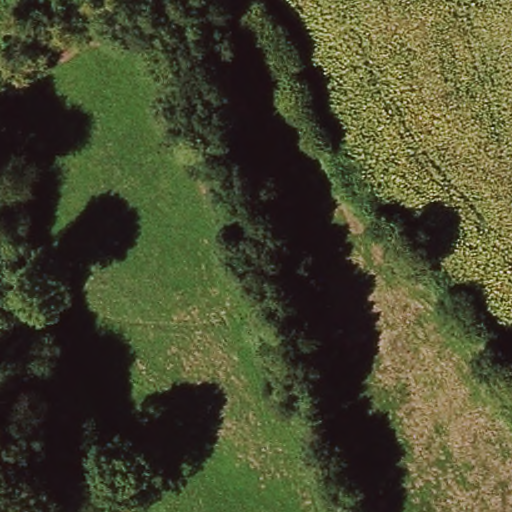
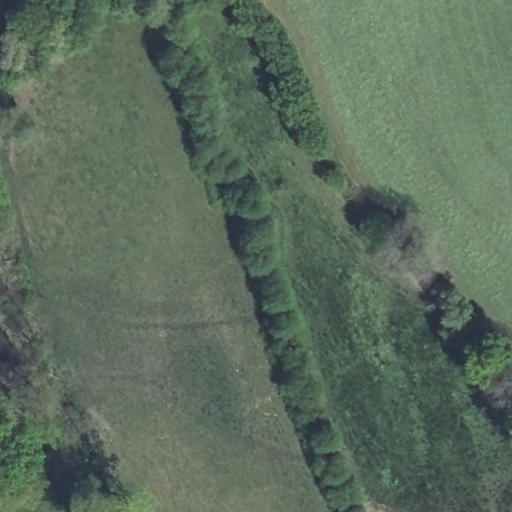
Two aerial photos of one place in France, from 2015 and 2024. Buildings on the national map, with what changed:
[]

